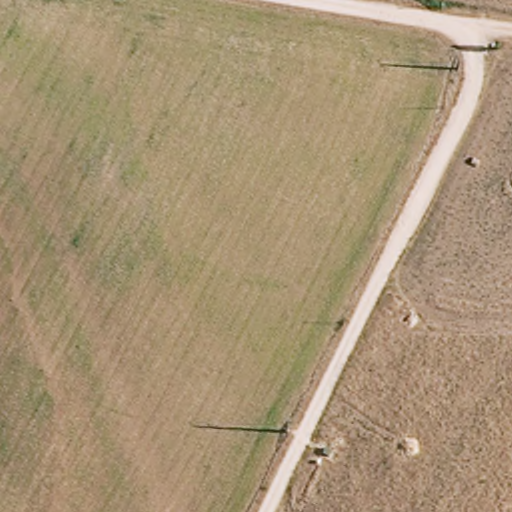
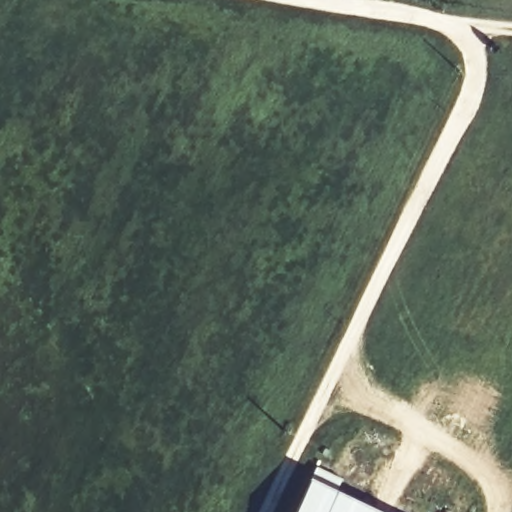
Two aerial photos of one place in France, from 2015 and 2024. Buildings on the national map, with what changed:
new [(381,512),(294,512),(310,478),(381,512)]

